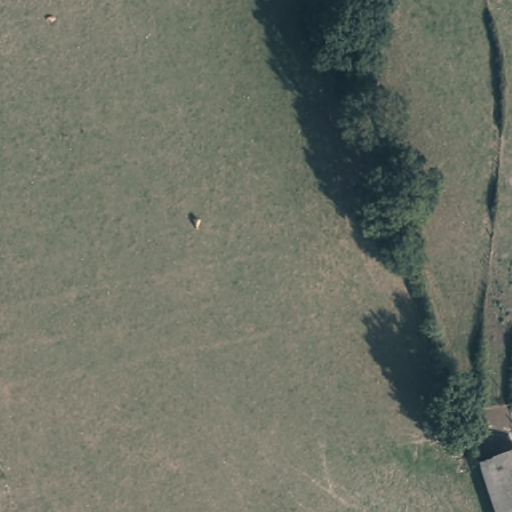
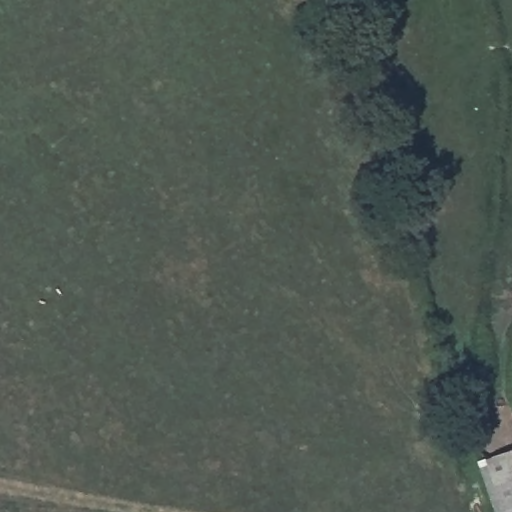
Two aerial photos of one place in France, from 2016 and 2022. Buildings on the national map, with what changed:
unchanged [(512,447),(512,512),(494,512),(477,458),(512,447)]

